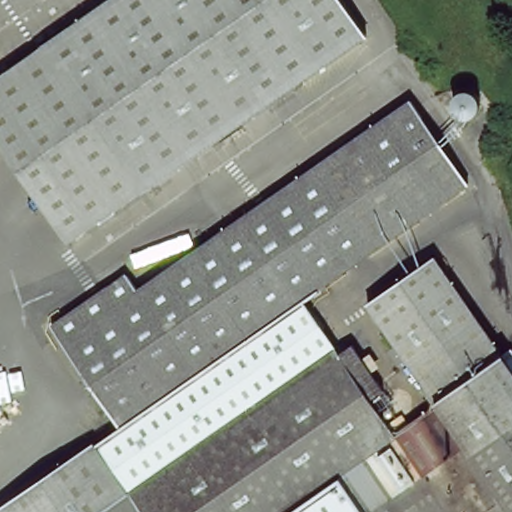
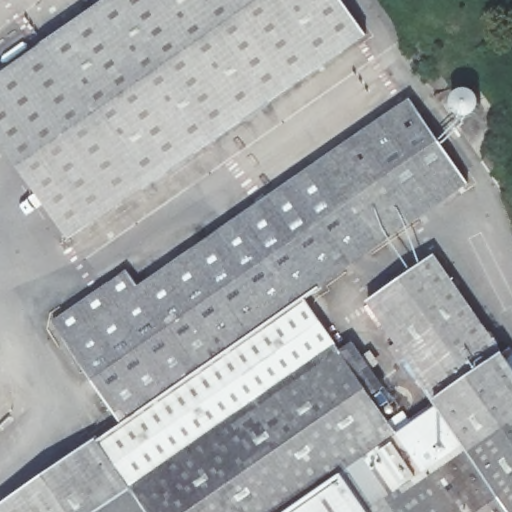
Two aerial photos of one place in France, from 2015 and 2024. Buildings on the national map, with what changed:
unchanged [(349,0),(372,34),(151,187),(52,44),(116,0),(349,0)]
unchanged [(77,239),(0,128),(0,81),(52,44),(151,187),(77,239)]
unchanged [(126,423),(56,323),(129,269),(139,282),(413,98),(473,183),(302,301),(336,349),(398,433),(440,403),(407,357),(368,303),(430,259),(469,312),(490,343),(497,352),(512,373),(512,512),(0,512),(0,509),(126,423)]

